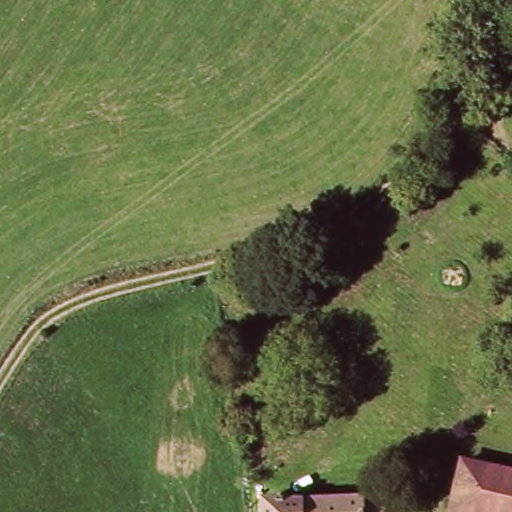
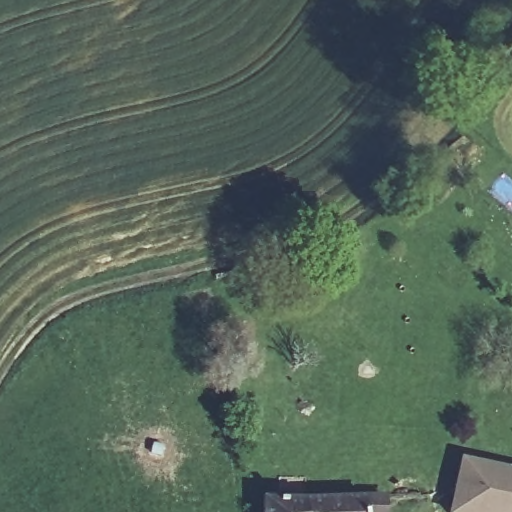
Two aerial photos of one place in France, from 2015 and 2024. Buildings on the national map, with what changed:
unchanged [(456,494),(463,462),(512,472),(512,512),(452,512),(456,494)]
unchanged [(271,502),(388,499),(388,512),(271,512),(271,502)]

